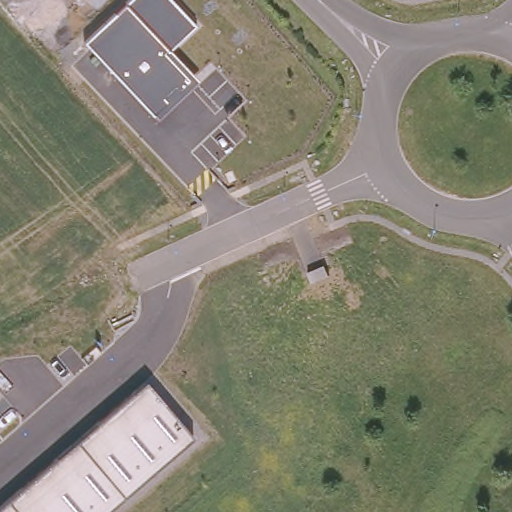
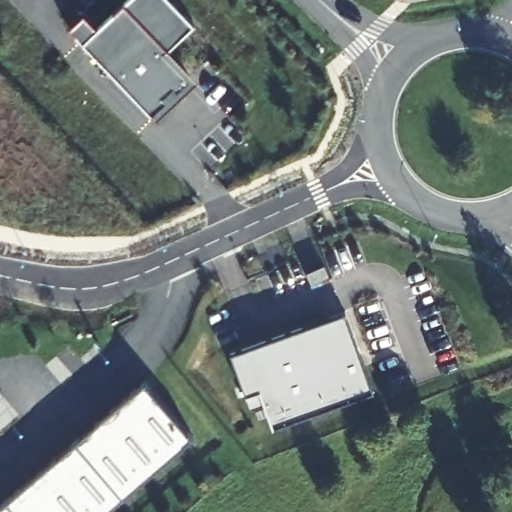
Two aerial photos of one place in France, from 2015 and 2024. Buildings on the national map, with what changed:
unchanged [(197,80),(156,119),(83,42),(128,0),(171,0),(194,25),(168,49),(197,80)]
new [(351,308),(380,388),(279,424),(265,383),(252,390),(237,346),(351,308)]
unchanged [(106,512),(0,512),(0,506),(145,381),(192,438),(106,512)]

